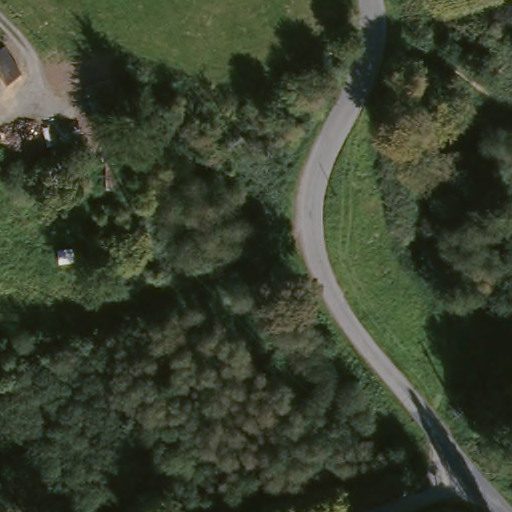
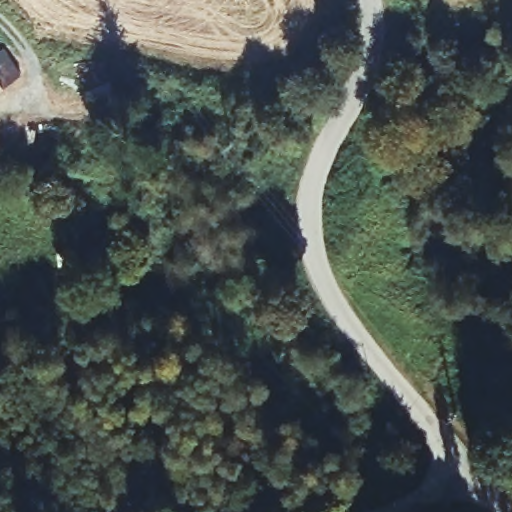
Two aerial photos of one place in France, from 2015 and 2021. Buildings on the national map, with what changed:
unchanged [(18,82),(0,91),(0,57),(8,54),(18,82)]

